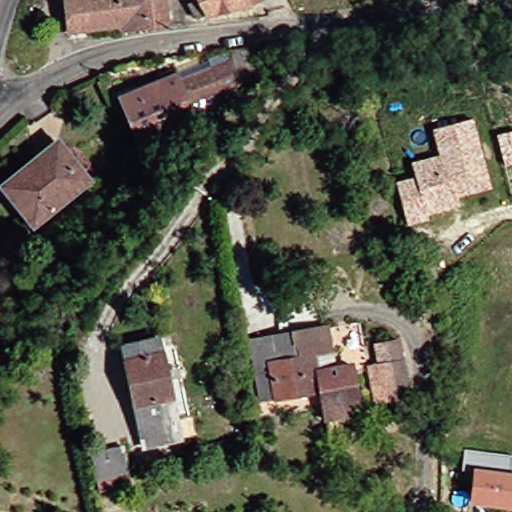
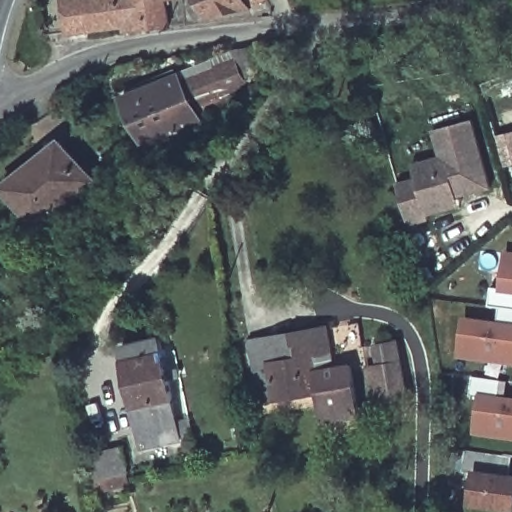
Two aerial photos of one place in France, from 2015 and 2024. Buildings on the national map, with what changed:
unchanged [(158,25),(117,30),(116,24),(62,30),(59,0),(158,0),(158,25)]
unchanged [(249,6),(205,15),(195,0),(243,0),(249,6)]
unchanged [(181,77),(182,77),(232,57),(243,85),(242,86),(192,110),(181,77)]
unchanged [(125,96),(180,74),(181,77),(192,110),(195,116),(197,123),(165,136),(143,146),(125,96)]
unchanged [(473,121),(491,188),(450,200),(452,210),(427,217),(427,222),(410,226),(398,184),(416,178),(413,164),(439,156),(433,132),(473,121)]
unchanged [(26,232),(0,199),(0,185),(52,145),(85,187),(26,232)]
new [(462,316),(498,321),(500,307),(490,306),(492,286),(500,288),(505,249),(512,251),(512,364),(458,357),(462,316)]
unchanged [(353,429),(318,434),(313,392),(259,397),(255,361),(253,337),(331,328),(333,352),(317,354),(317,370),(345,367),(353,429)]
unchanged [(171,435),(172,439),(134,446),(114,345),(151,337),(155,355),(171,435)]
unchanged [(364,401),(357,367),(373,363),(370,343),(391,339),(402,394),(364,401)]
unchanged [(186,432),(171,435),(155,355),(169,351),(186,432)]
new [(512,396),(512,437),(475,432),(478,396),(471,395),(473,376),(509,381),(508,396),(512,396)]
unchanged [(86,476),(81,450),(116,443),(121,469),(124,485),(89,492),(86,476)]
unchanged [(512,509),(470,504),(474,473),(463,472),(465,450),(512,455),(512,467),(512,472),(512,473),(512,509)]

